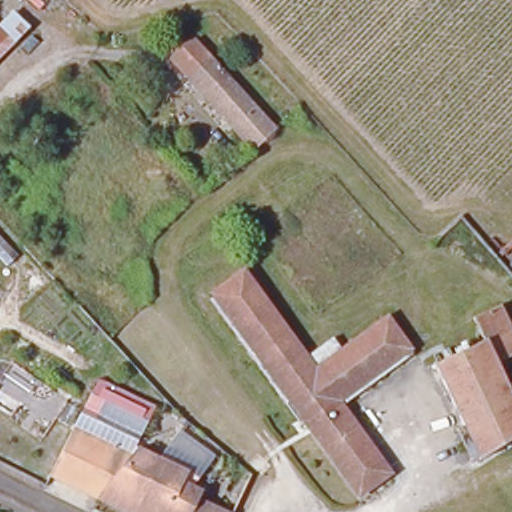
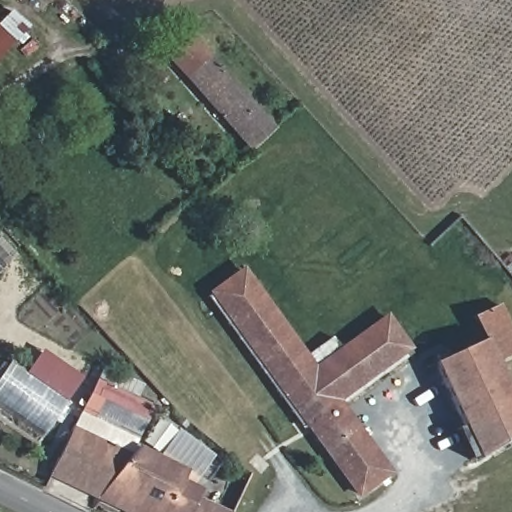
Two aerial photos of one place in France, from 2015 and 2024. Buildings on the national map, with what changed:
unchanged [(16,0),(17,0),(16,1),(16,0)]
unchanged [(0,55),(0,23),(13,13),(27,29),(0,55)]
unchanged [(270,130),(247,150),(163,48),(186,30),(270,130)]
unchanged [(246,268),(285,324),(260,345),(221,286),(246,268)]
unchanged [(209,293),(214,290),(221,286),(260,345),(248,355),(209,293)]
unchanged [(472,319),(498,307),(512,342),(512,356),(494,362),(512,404),(512,439),(474,460),(431,363),(484,340),(472,319)]
unchanged [(343,403),(387,470),(372,480),(260,345),(285,324),(307,357),(336,334),(337,335),(344,343),(347,346),(391,319),(400,333),(408,345),(347,387),(336,395),(343,403)]
unchanged [(260,345),(306,416),(307,417),(293,425),(248,355),(260,345)]
unchanged [(357,491),(307,417),(306,416),(260,345),(372,480),(357,491)]
unchanged [(408,345),(415,356),(354,396),(343,403),(336,395),(347,387),(408,345)]
new [(40,440),(0,413),(0,380),(12,362),(27,373),(43,350),(84,378),(40,440)]
unchanged [(127,454),(72,424),(100,374),(157,408),(133,456),(127,454)]
unchanged [(97,495),(50,470),(51,467),(58,452),(65,439),(72,424),(127,454),(131,456),(133,456),(141,455),(154,461),(168,433),(173,436),(208,454),(205,460),(190,489),(199,494),(196,499),(195,502),(198,503),(209,509),(215,512),(129,512),(97,495)]

